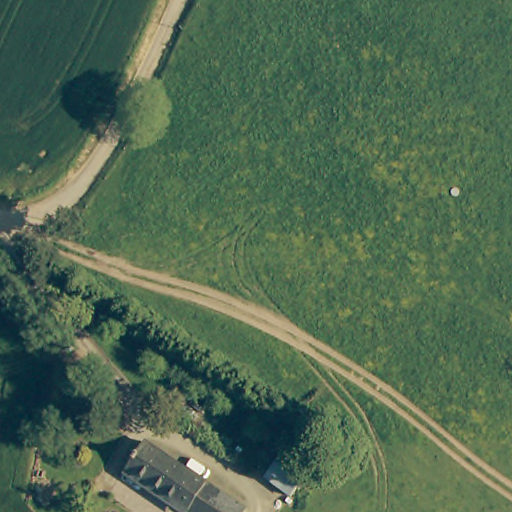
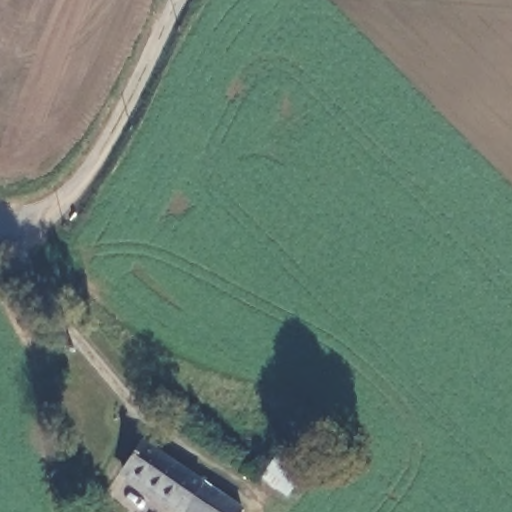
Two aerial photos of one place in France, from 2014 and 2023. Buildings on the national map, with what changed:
unchanged [(141,439),(244,510),(242,512),(189,512),(123,465),(141,439)]

